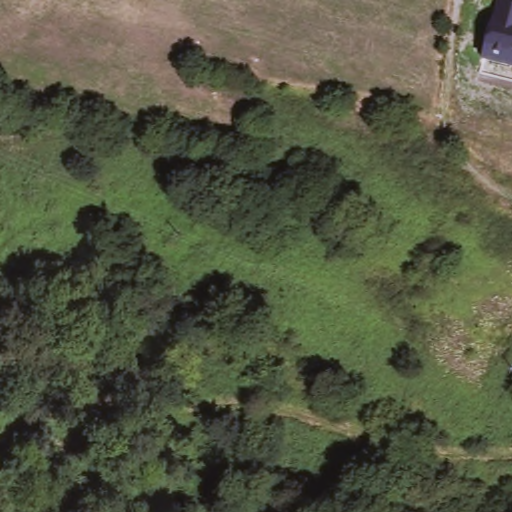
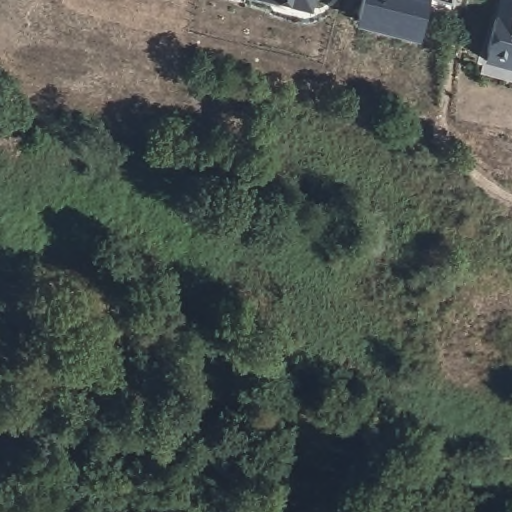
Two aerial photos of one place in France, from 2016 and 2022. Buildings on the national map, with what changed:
new [(310,4),(293,0),(312,0),(310,4)]
new [(364,0),(426,0),(430,1),(422,38),(358,24),(364,0)]

